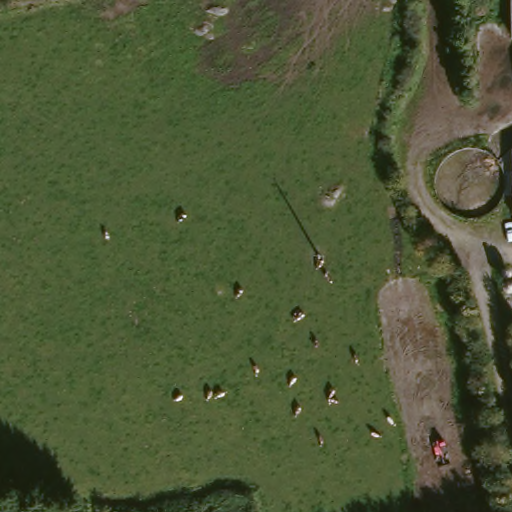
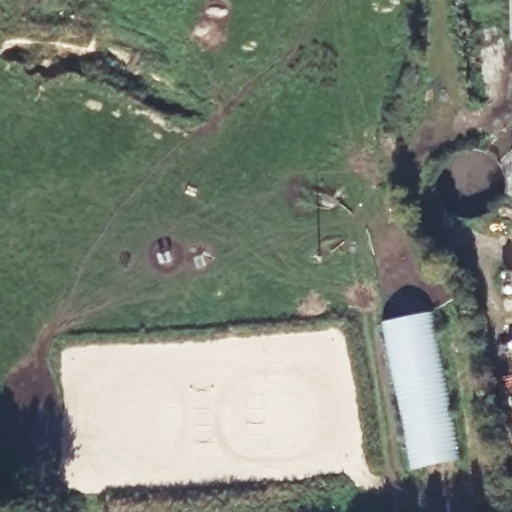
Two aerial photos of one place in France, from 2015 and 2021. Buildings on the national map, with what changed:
unchanged [(510,0),(512,0),(512,39),(510,39),(510,0)]
unchanged [(511,159),(511,145),(512,145),(512,189),(511,159)]
new [(386,322),(431,313),(461,459),(414,468),(386,322)]

